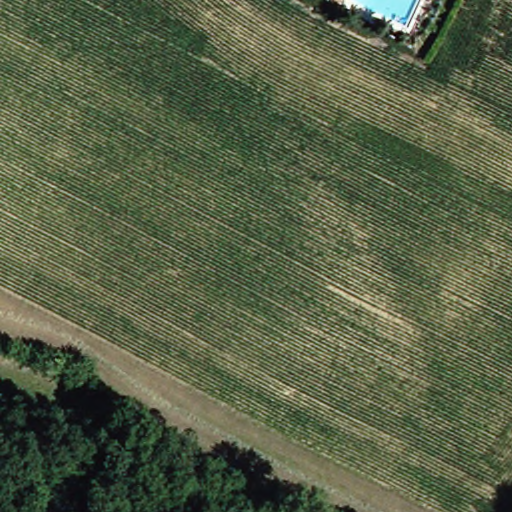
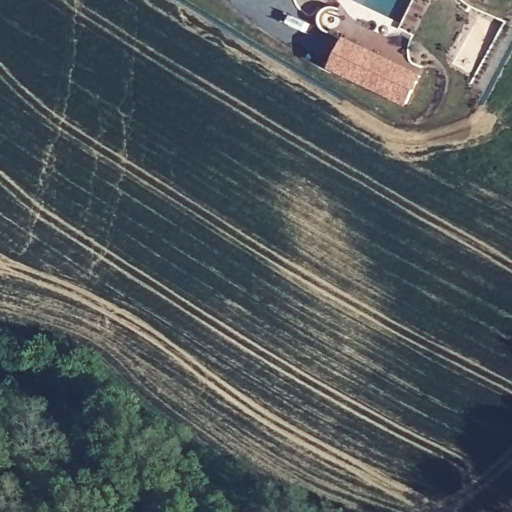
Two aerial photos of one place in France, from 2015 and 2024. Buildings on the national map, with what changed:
unchanged [(327,1),(325,0),(328,0),(327,1)]
new [(408,106),(331,68),(346,35),(425,74),(408,106)]

